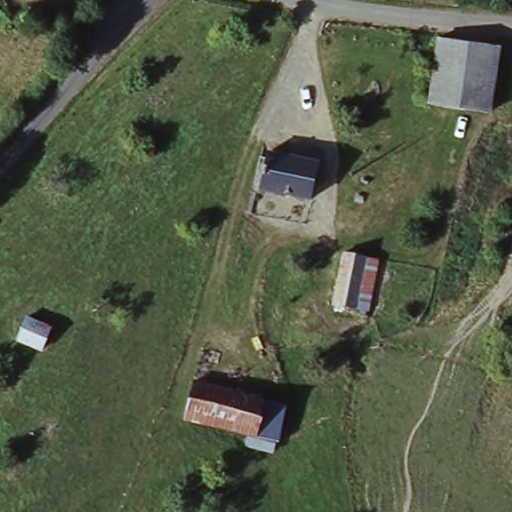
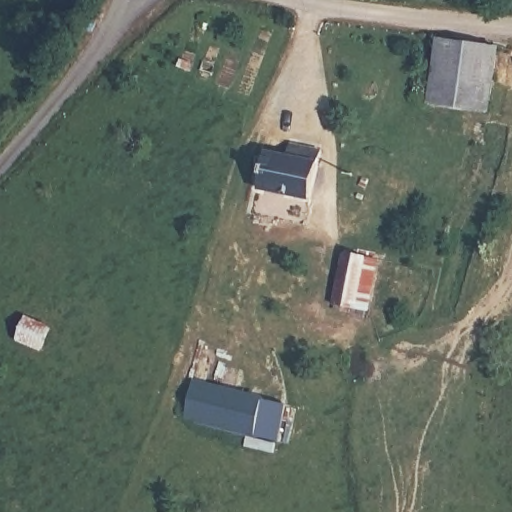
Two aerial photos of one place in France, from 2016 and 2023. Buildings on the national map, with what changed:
unchanged [(492,49),(482,108),(432,98),(441,39),(492,49)]
unchanged [(269,160),(278,163),(282,149),(323,157),(312,204),(260,193),(269,160)]
unchanged [(377,263),(361,312),(334,301),(350,254),(377,263)]
unchanged [(51,332),(42,353),(15,341),(26,320),(51,332)]
unchanged [(280,445),(266,441),(187,415),(199,383),(276,409),(290,415),(280,445)]

